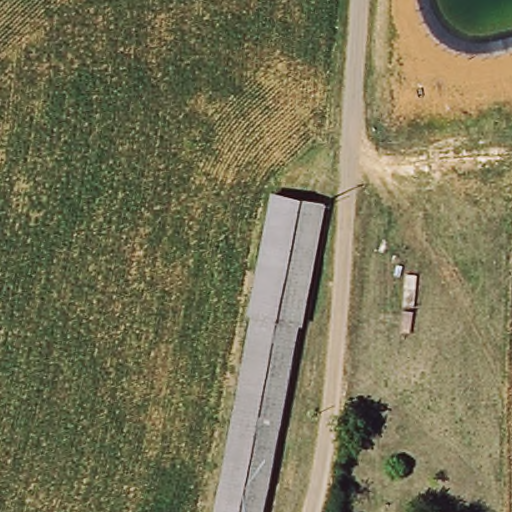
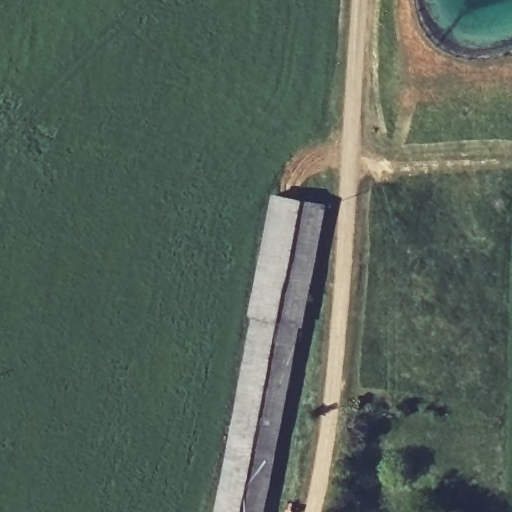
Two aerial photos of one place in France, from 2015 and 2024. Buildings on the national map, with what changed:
unchanged [(321,206),(303,319),(297,318),(284,394),(271,475),(264,512),(221,512),(253,312),(248,311),(268,195),(321,206)]

